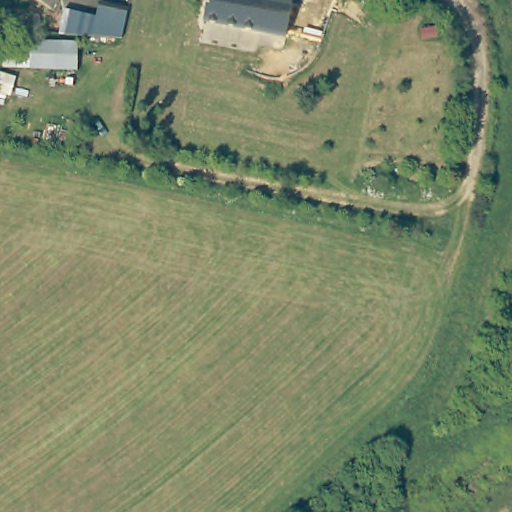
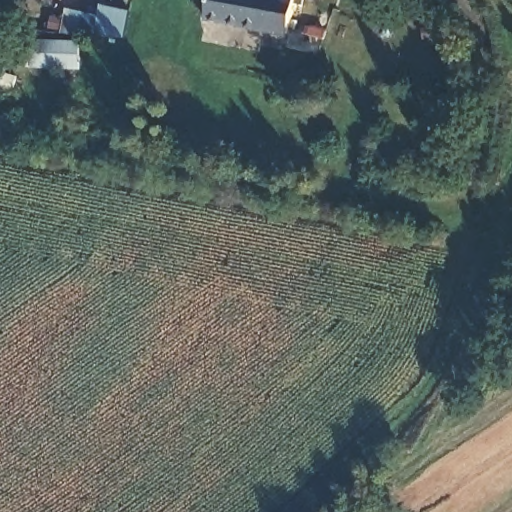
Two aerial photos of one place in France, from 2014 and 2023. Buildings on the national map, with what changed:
unchanged [(208,0),(300,0),(298,6),(291,5),(285,35),(204,19),(208,0)]
unchanged [(76,11),(96,15),(98,5),(128,11),(122,37),(72,40),(76,11)]
unchanged [(3,42),(11,42),(75,42),(76,67),(11,67),(4,67),(3,42)]

